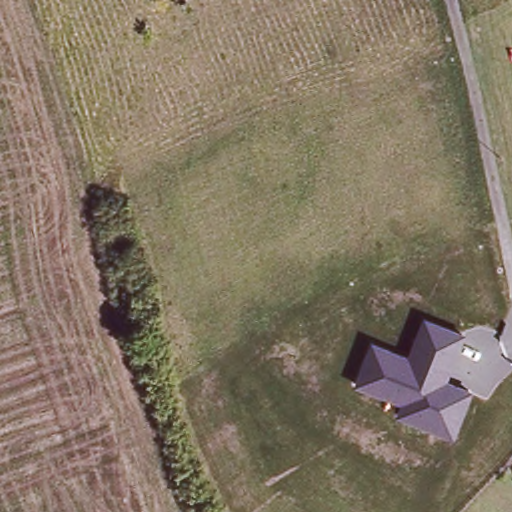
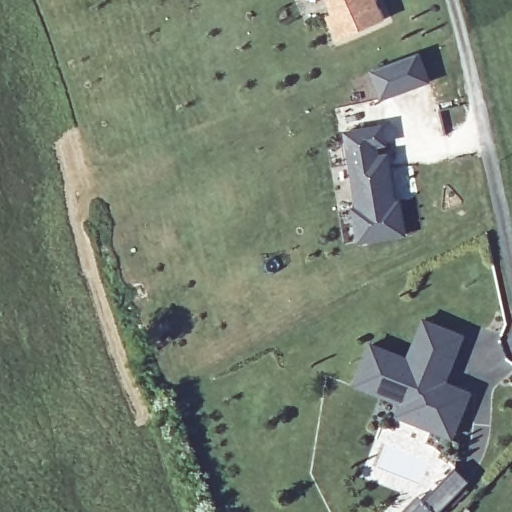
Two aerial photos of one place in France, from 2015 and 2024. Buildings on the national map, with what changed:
new [(337,36),(327,14),(333,13),(328,0),(376,0),(383,19),(337,36)]
new [(420,53),(431,81),(384,99),(373,71),(420,53)]
new [(386,124),(397,202),(402,201),(407,236),(357,244),(352,212),(354,211),(342,131),(386,124)]
unchanged [(467,334),(448,381),(472,391),(455,441),(394,418),(401,404),(353,385),(370,341),(408,357),(422,319),(467,334)]
new [(421,495),(424,499),(455,468),(470,483),(440,512),(404,512),(421,495)]

